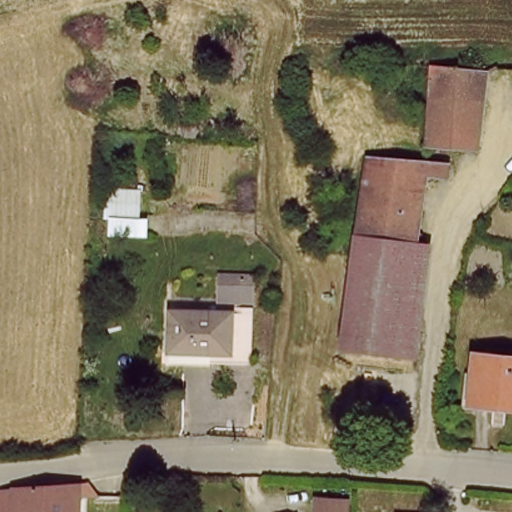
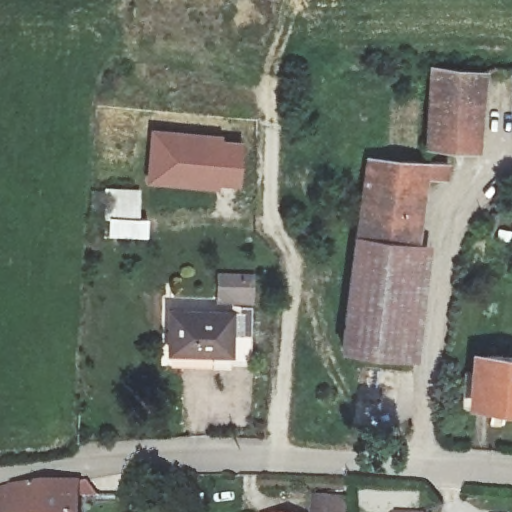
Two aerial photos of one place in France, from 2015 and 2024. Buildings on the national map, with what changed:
unchanged [(487,75),(476,153),(424,147),(434,67),(487,75)]
new [(224,135),(223,140),(245,142),(241,187),(221,186),(220,191),(146,184),(151,129),(224,135)]
unchanged [(356,239),(360,160),(417,167),(440,170),(440,183),(419,182),(417,244),(356,239)]
new [(149,220),(147,239),(107,234),(110,207),(91,196),(93,186),(141,192),(138,219),(149,220)]
unchanged [(417,244),(409,352),(352,348),(356,247),(356,239),(417,244)]
unchanged [(227,312),(225,350),(162,348),(165,308),(227,312)]
unchanged [(512,361),(512,407),(468,405),(471,357),(512,361)]
unchanged [(22,486),(87,481),(84,512),(20,512),(22,488),(22,486)]
unchanged [(341,495),(341,508),(316,507),(316,494),(341,495)]

